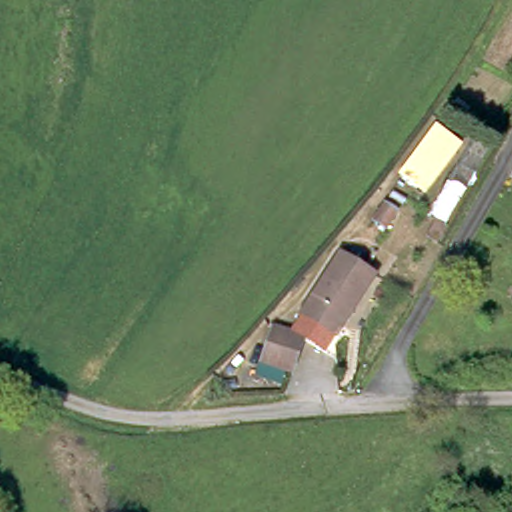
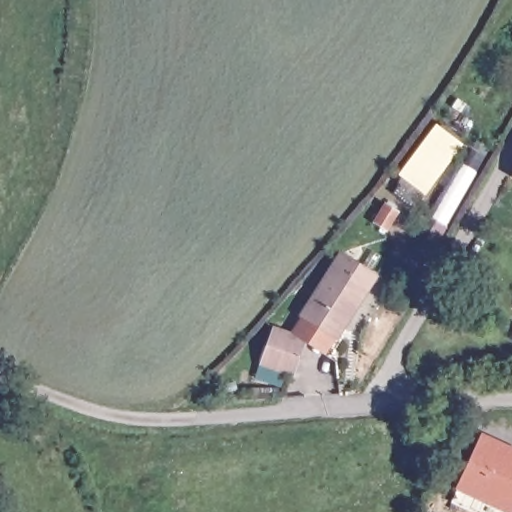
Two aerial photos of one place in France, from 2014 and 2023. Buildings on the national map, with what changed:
unchanged [(437,125),(462,144),(423,193),(400,174),(437,125)]
unchanged [(398,216),(387,232),(376,224),(386,208),(398,216)]
unchanged [(371,271),(334,331),(301,310),(337,250),(371,271)]
unchanged [(300,334),(290,368),(262,359),(272,325),(300,334)]
new [(480,432),(512,446),(512,512),(503,512),(455,489),(480,432)]

